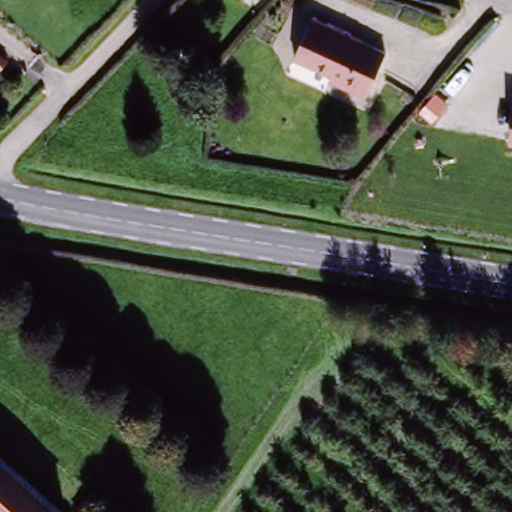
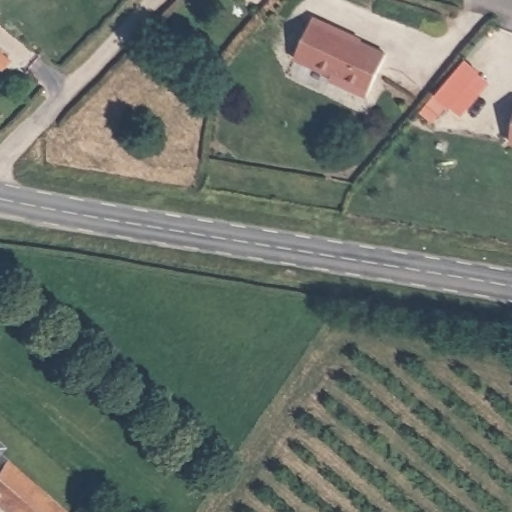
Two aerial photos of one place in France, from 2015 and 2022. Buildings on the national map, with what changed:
unchanged [(308,24),(347,32),(346,37),(386,47),(373,91),(332,82),(335,76),(296,67),(308,24)]
new [(465,60),(479,71),(433,124),(421,110),(465,60)]
unchanged [(512,126),(512,145),(509,144),(512,126)]
unchanged [(0,485),(0,429),(12,439),(6,447),(30,467),(35,470),(77,502),(77,504),(70,512),(32,512),(0,485)]
unchanged [(102,512),(91,512),(83,505),(95,492),(96,492),(109,504),(102,512)]

